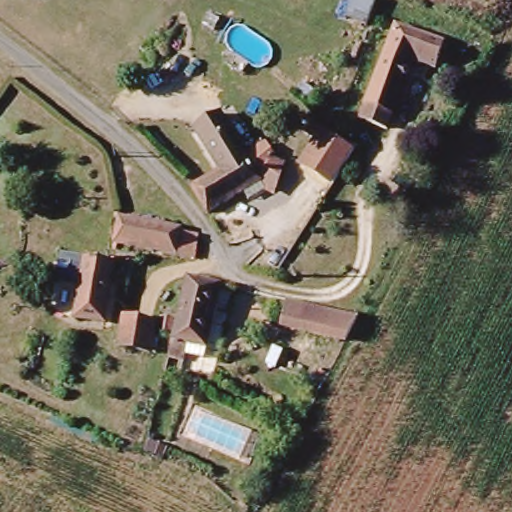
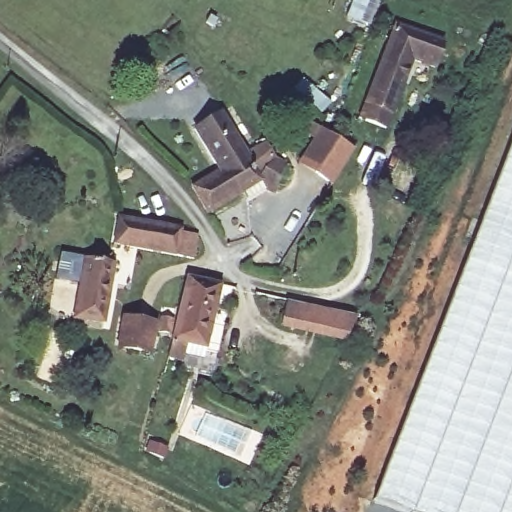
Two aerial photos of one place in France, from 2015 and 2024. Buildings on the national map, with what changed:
unchanged [(412,65),(385,134),(357,124),(393,25),(442,40),(434,71),(412,65)]
unchanged [(219,116),(245,158),(262,147),(280,168),(268,196),(254,187),(202,218),(187,192),(217,171),(194,131),(219,116)]
unchanged [(318,127),(326,131),(348,146),(329,180),(296,161),(318,127)]
new [(412,512),(375,498),(512,139),(512,512),(412,512)]
unchanged [(180,238),(198,242),(192,266),(114,248),(121,221),(181,232),(180,238)]
unchanged [(52,315),(56,289),(81,292),(85,263),(114,267),(105,325),(52,315)]
unchanged [(185,344),(182,353),(170,350),(187,281),(220,289),(205,350),(185,344)]
unchanged [(282,325),(285,304),(356,317),(346,338),(282,325)]
unchanged [(159,318),(169,318),(169,331),(158,331),(159,318)]
unchanged [(149,352),(118,347),(122,320),(152,325),(149,352)]

